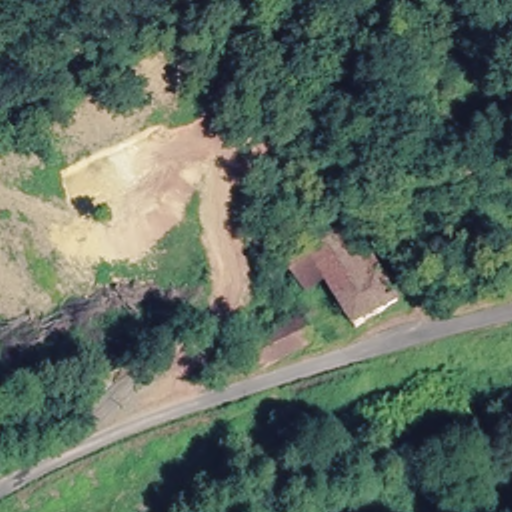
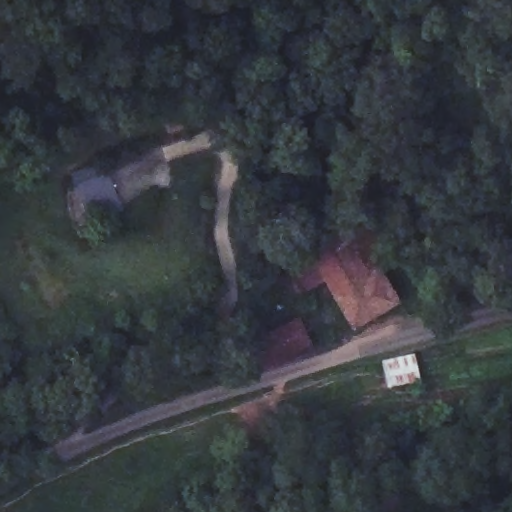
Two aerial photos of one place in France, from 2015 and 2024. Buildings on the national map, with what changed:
unchanged [(398,310),(356,332),(309,252),(334,237),(357,222),(376,251),(368,257),(380,277),(398,308),(398,310)]
unchanged [(249,349),(295,322),(298,327),(303,343),(256,368),(249,349)]

